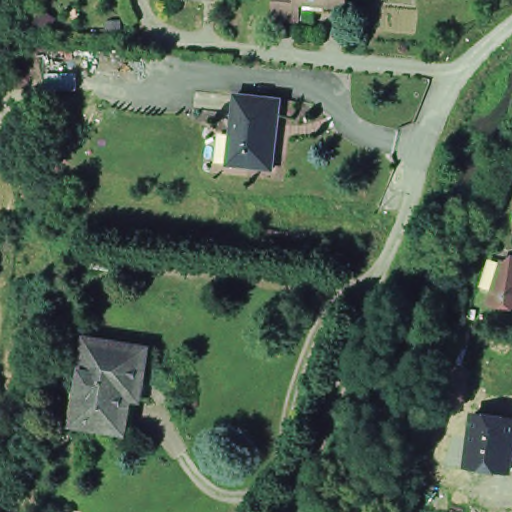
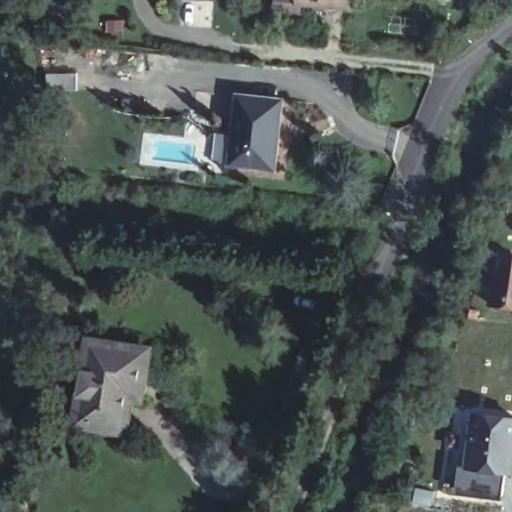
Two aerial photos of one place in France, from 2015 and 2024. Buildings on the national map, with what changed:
unchanged [(274,0),(343,0),(342,6),(296,4),(295,20),(273,19),(274,0)]
unchanged [(226,165),(228,146),(232,105),(233,95),(280,99),(278,110),(274,152),(272,169),(226,165)]
unchanged [(512,306),(487,302),(503,258),(512,259),(512,306)]
unchanged [(72,385),(82,387),(90,333),(148,343),(140,394),(132,393),(126,426),(77,418),(74,437),(65,436),(68,416),(72,385)]
unchanged [(461,413),(458,434),(438,431),(441,410),(461,413)]
unchanged [(512,442),(512,452),(510,452),(507,473),(464,467),(471,414),(512,420),(512,442)]

